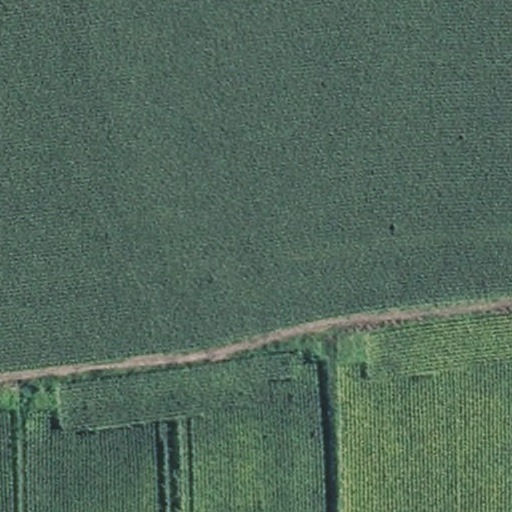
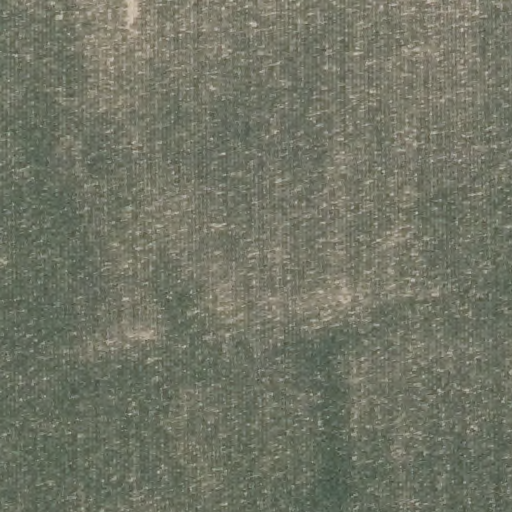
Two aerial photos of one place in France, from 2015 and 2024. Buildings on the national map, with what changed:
[]

